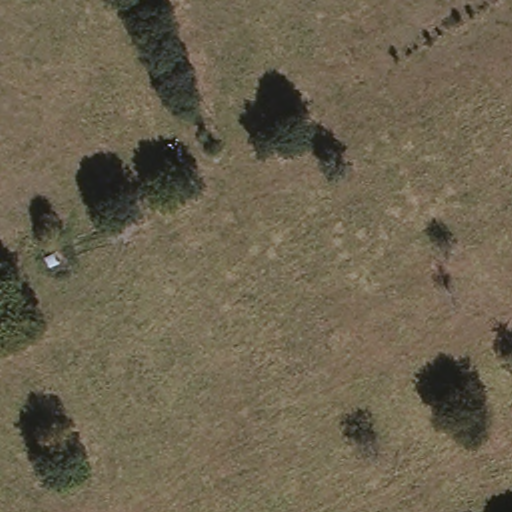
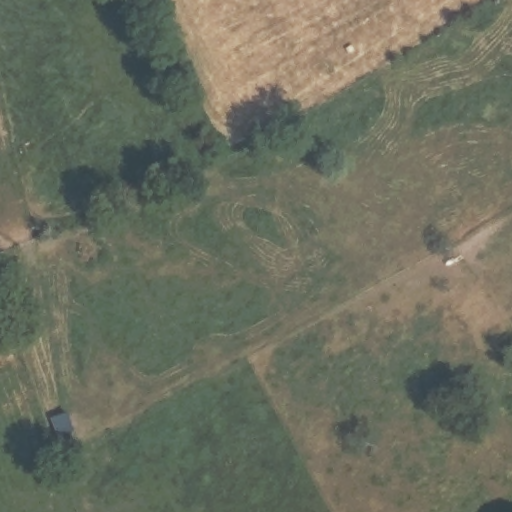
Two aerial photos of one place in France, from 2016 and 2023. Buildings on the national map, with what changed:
[]

